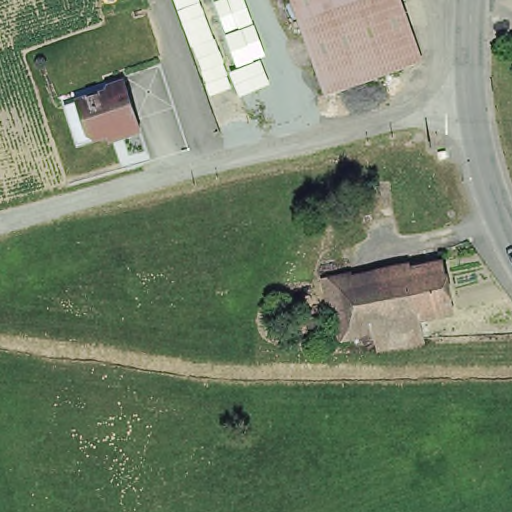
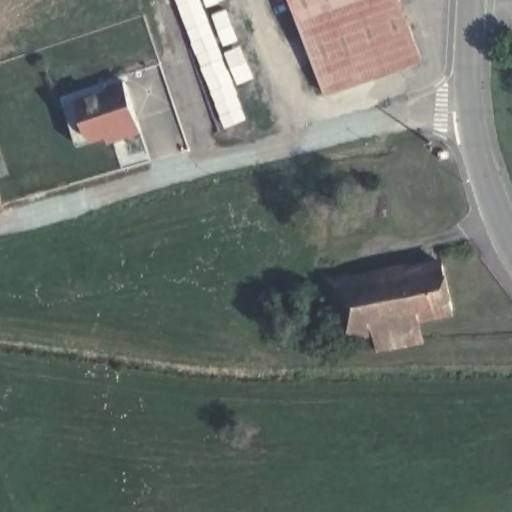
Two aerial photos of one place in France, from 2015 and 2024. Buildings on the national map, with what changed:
unchanged [(285,0),(348,0),(291,20),(285,0)]
unchanged [(316,95),(291,20),(348,0),(394,0),(415,61),(316,95)]
unchanged [(90,143),(76,95),(120,82),(120,85),(137,80),(152,130),(135,135),(123,134),(123,132),(107,137),(90,143)]
unchanged [(454,298),(423,306),(412,258),(442,252),(454,298)]
unchanged [(382,316),(340,325),(328,278),(412,258),(423,306),(418,307),(423,327),(387,335),(382,316)]

